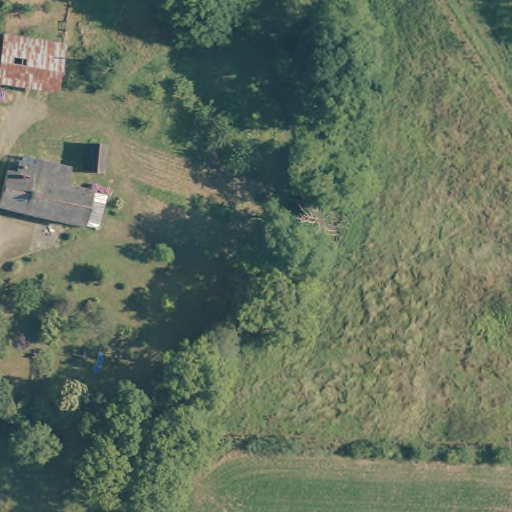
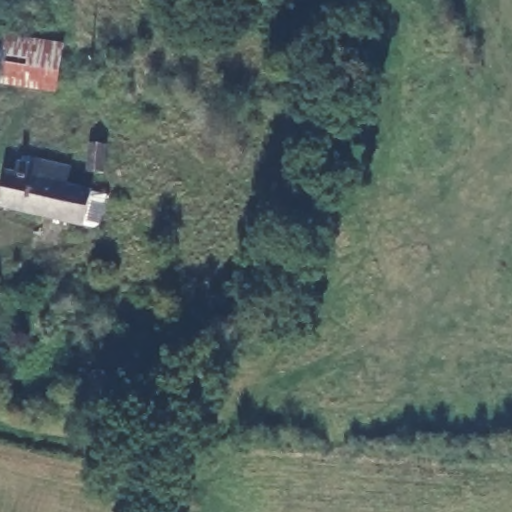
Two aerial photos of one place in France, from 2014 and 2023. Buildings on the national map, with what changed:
unchanged [(76,45),(70,88),(10,78),(18,37),(76,45)]
unchanged [(9,81),(0,127),(0,80),(9,81)]
unchanged [(109,174),(89,170),(94,147),(110,150),(109,174)]
unchanged [(102,228),(0,206),(5,175),(15,176),(16,166),(32,167),(34,159),(66,166),(63,187),(107,196),(102,228)]

